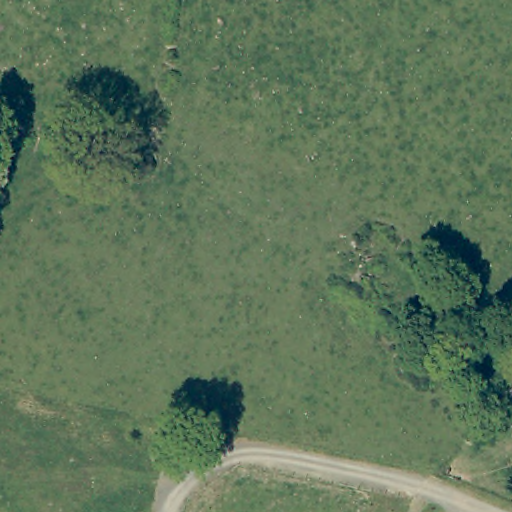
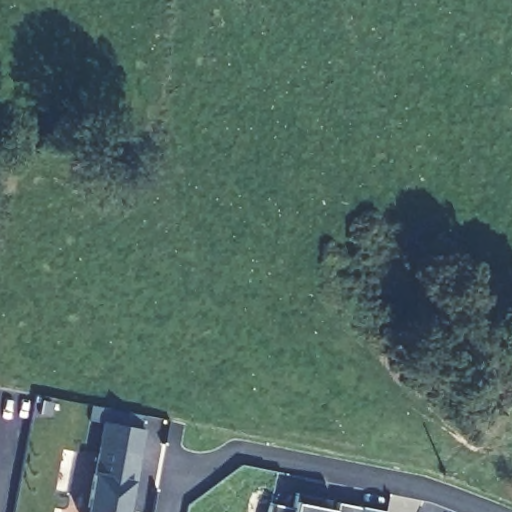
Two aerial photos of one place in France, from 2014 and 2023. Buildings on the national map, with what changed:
new [(95,475),(101,447),(105,423),(143,431),(139,455),(129,502),(126,502),(124,512),(86,512),(94,475),(95,475)]
new [(270,503),(294,508),(297,493),(322,498),(320,507),(335,510),(337,502),(361,507),(360,512),(268,512),(270,503)]

